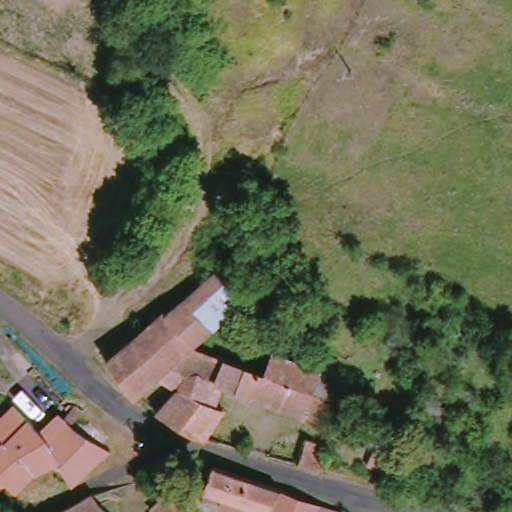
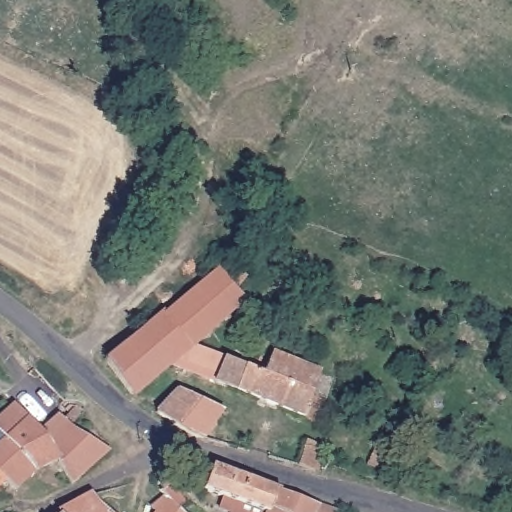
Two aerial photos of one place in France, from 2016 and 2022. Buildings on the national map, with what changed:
unchanged [(225,267),(240,282),(230,292),(237,301),(190,341),(186,345),(160,320),(225,267)]
unchanged [(155,315),(160,320),(186,345),(183,348),(145,383),(124,403),(95,366),(155,315)]
unchanged [(145,383),(183,348),(186,345),(215,358),(205,389),(215,392),(198,409),(162,394),(145,383)]
unchanged [(315,434),(308,430),(307,430),(296,424),(215,392),(205,389),(215,358),(258,376),(263,366),(270,353),(319,370),(317,377),(328,384),(320,407),(324,409),(315,434)]
unchanged [(162,394),(198,409),(207,415),(191,444),(148,418),(162,394)]
unchanged [(8,403),(40,435),(51,431),(56,436),(68,424),(99,454),(69,487),(45,464),(33,475),(18,488),(10,496),(0,485),(0,411),(8,403)]
unchanged [(301,447),(325,454),(323,469),(317,476),(294,471),(301,447)]
unchanged [(389,483),(367,471),(377,449),(399,458),(389,483)]
unchanged [(250,512),(200,490),(207,467),(317,506),(315,512),(250,512)]
unchanged [(104,512),(62,512),(92,499),(104,512)]
unchanged [(155,502),(169,512),(147,512),(144,509),(155,502)]

